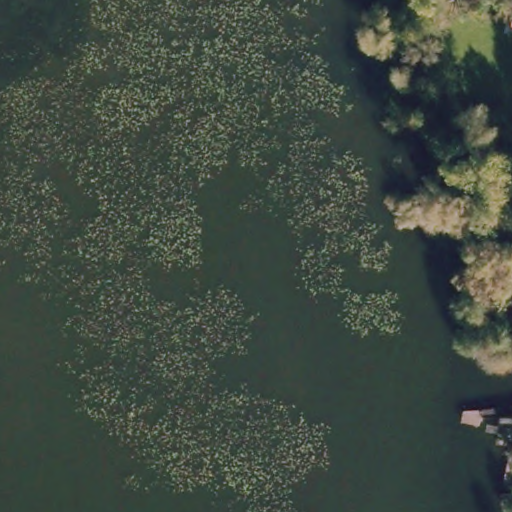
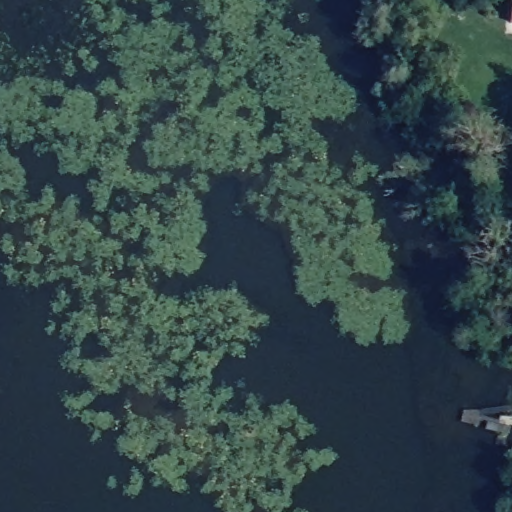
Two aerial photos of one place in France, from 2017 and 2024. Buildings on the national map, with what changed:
unchanged [(510,10),(512,10),(512,30),(510,30),(510,10)]

